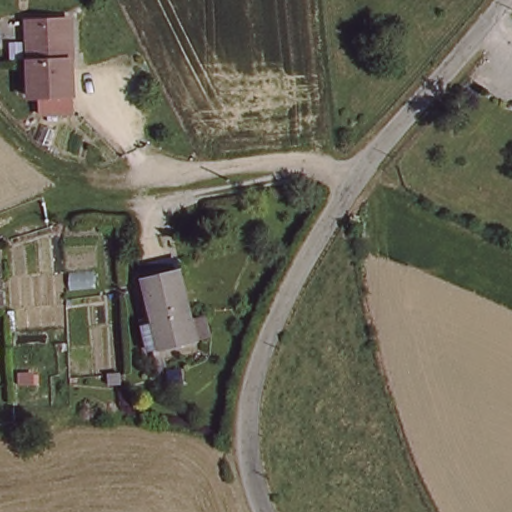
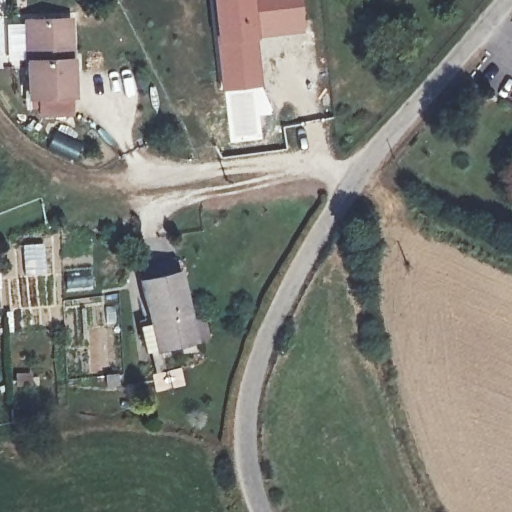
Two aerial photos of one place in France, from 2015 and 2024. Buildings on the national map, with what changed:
new [(256,37),(258,87),(220,91),(210,0),(252,0),(256,37)]
new [(303,33),(256,37),(252,0),(300,0),(303,33)]
unchanged [(76,21),(78,59),(81,101),(36,103),(31,24),(63,22),(76,21)]
unchanged [(155,331),(153,319),(145,320),(140,283),(143,283),(141,271),(175,267),(177,279),(180,279),(190,351),(147,357),(145,343),(143,333),(155,331)]

